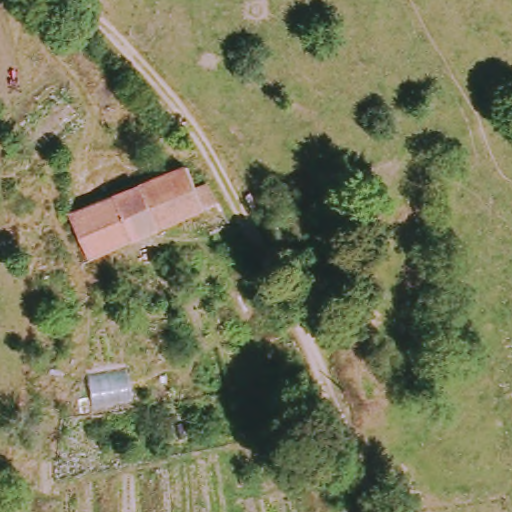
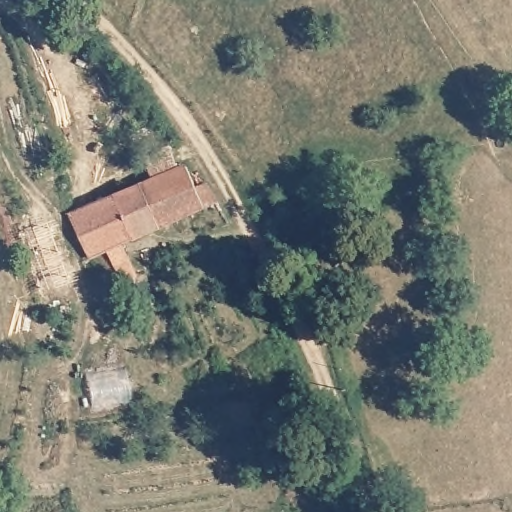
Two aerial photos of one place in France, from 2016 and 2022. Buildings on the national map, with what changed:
unchanged [(191,170),(200,192),(214,185),(229,208),(232,213),(213,220),(208,209),(94,255),(77,216),(191,170)]

